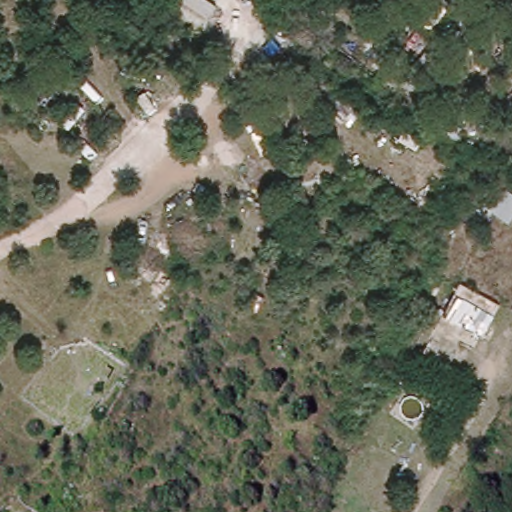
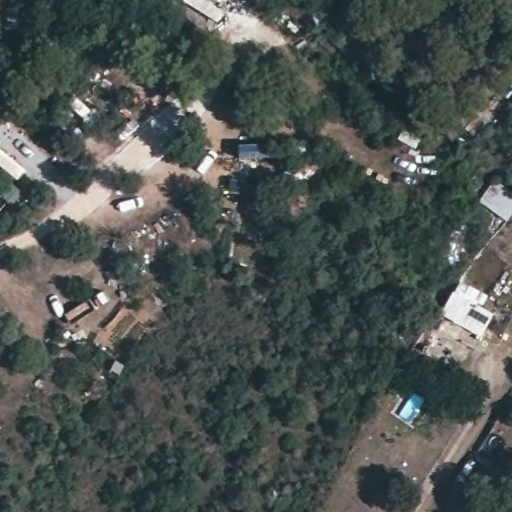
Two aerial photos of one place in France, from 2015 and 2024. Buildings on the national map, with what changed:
unchanged [(495,180),(512,191),(512,214),(509,219),(481,200),(495,180)]
unchanged [(445,316),(466,281),(472,284),(502,302),(485,335),(460,320),(458,324),(449,318),(445,316)]

